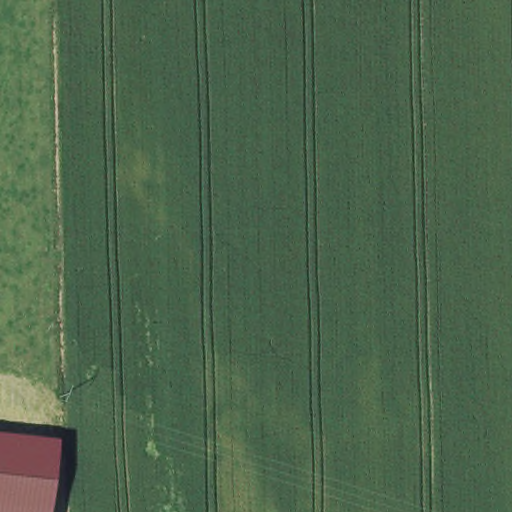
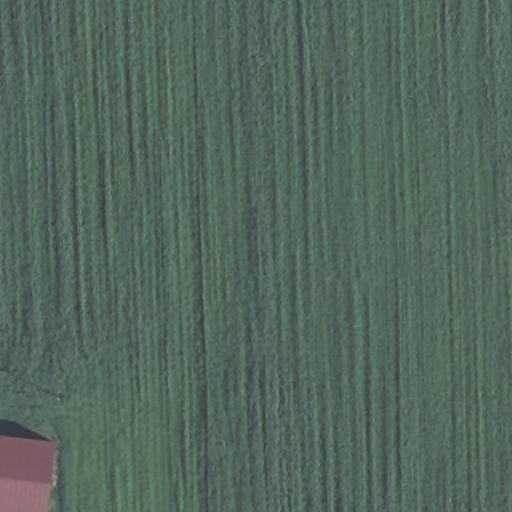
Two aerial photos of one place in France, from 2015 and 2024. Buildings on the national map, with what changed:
unchanged [(0,512),(0,433),(57,440),(49,512),(0,512)]

